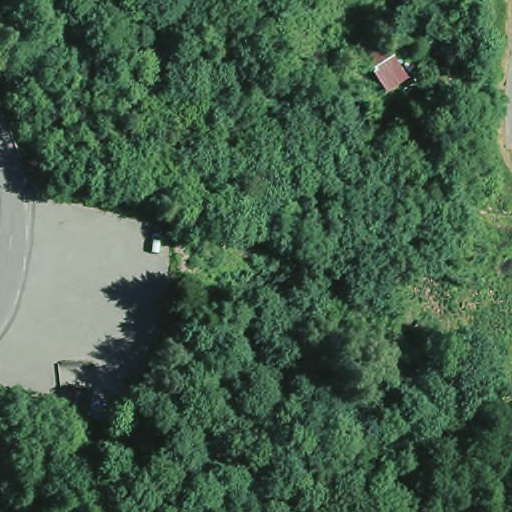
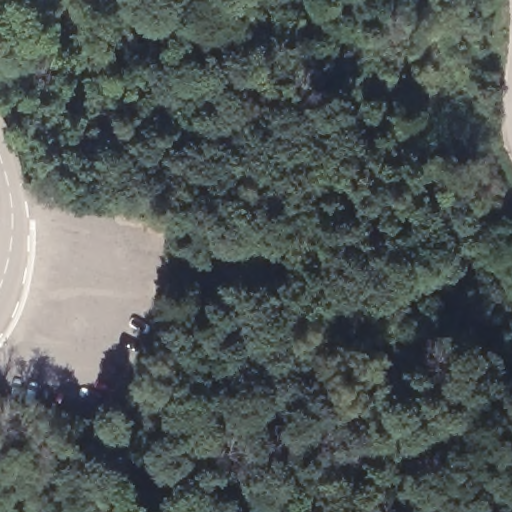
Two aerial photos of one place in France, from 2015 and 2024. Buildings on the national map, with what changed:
unchanged [(397,35),(412,88),(371,100),(356,46),(397,35)]

